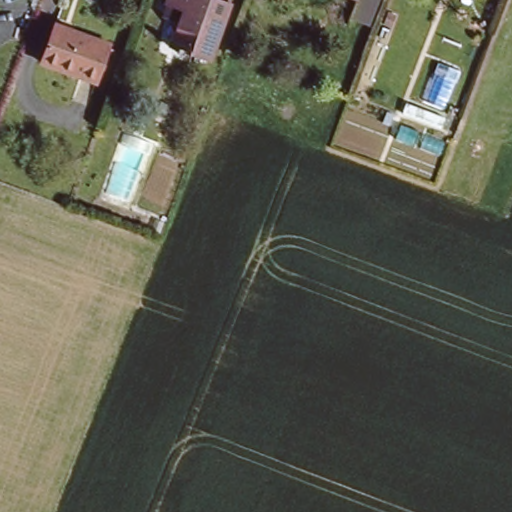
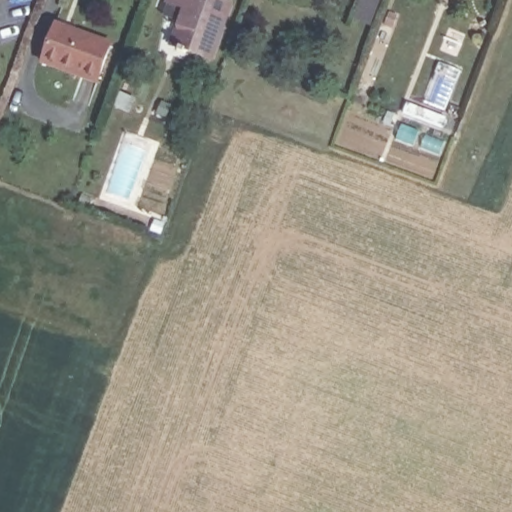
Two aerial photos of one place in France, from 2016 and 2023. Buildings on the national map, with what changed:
unchanged [(184,9),(169,3),(170,0),(211,0),(224,5),(204,62),(168,48),(184,9)]
unchanged [(54,27),(79,36),(109,47),(96,83),(40,63),(51,34),(54,27)]

